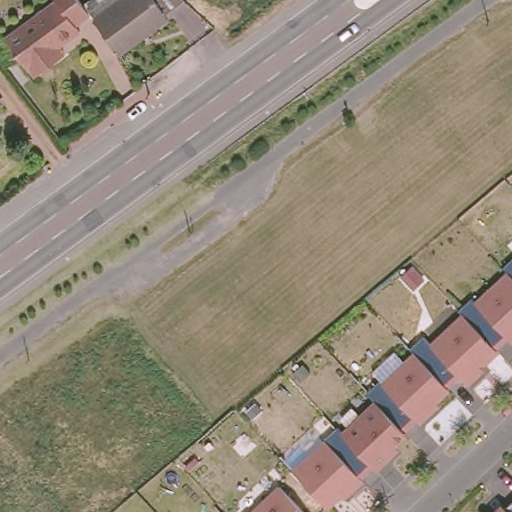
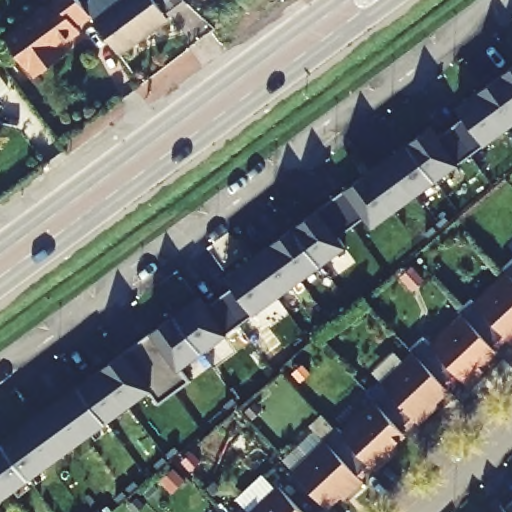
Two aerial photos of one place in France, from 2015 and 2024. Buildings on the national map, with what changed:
unchanged [(39,76),(32,67),(29,70),(4,40),(54,0),(78,0),(80,2),(88,12),(75,23),(80,29),(60,45),(67,54),(62,57),(39,76)]
unchanged [(80,2),(83,0),(184,0),(185,1),(145,32),(120,51),(115,46),(88,12),(80,2)]
new [(439,138),(464,117),(457,108),(512,67),(512,122),(372,227),(365,217),(340,236),(347,245),(180,367),(189,380),(159,403),(150,392),(0,501),(0,443),(430,126),(439,138)]
unchanged [(329,506),(290,467),(512,253),(512,332),(329,506)]
unchanged [(275,487),(299,512),(248,512),(275,487)]
unchanged [(500,502),(505,509),(512,503),(512,512),(491,512),(500,502)]

